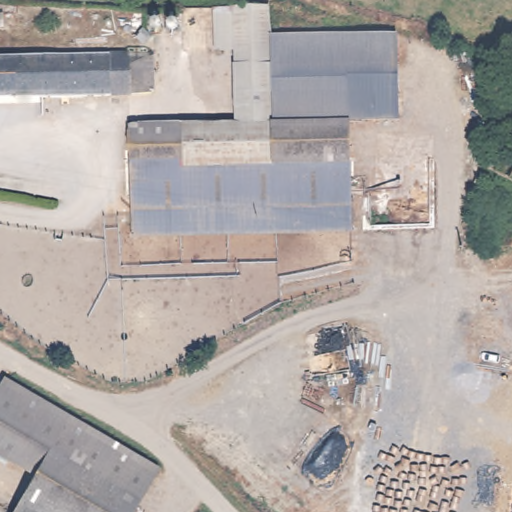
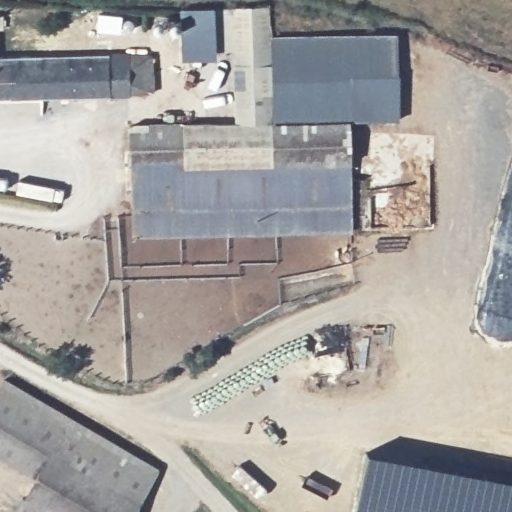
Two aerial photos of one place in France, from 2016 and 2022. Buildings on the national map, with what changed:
unchanged [(234,47),(190,48),(189,5),(266,3),(268,38),(272,119),(237,121),(234,47)]
unchanged [(6,14),(7,29),(0,29),(0,14),(6,14)]
unchanged [(397,36),(401,118),(348,121),(348,116),(347,116),(275,119),(272,119),(268,38),(397,36)]
unchanged [(155,49),(156,89),(0,97),(0,68),(21,67),(20,55),(155,49)]
unchanged [(20,55),(21,67),(0,68),(0,56),(20,55)]
unchanged [(348,116),(348,121),(350,156),(272,162),(275,119),(348,116)]
unchanged [(272,119),(275,119),(272,162),(137,167),(135,126),(237,121),(272,119)]
unchanged [(272,162),(350,156),(353,201),(137,210),(137,167),(272,162)]
unchanged [(353,201),(353,226),(139,236),(137,210),(353,201)]
unchanged [(160,473),(157,478),(138,508),(55,456),(40,479),(0,453),(0,400),(11,384),(12,380),(88,428),(93,431),(160,473)]
new [(512,479),(512,512),(354,512),(366,451),(512,479)]
unchanged [(135,512),(18,512),(40,479),(55,456),(138,508),(135,512)]

